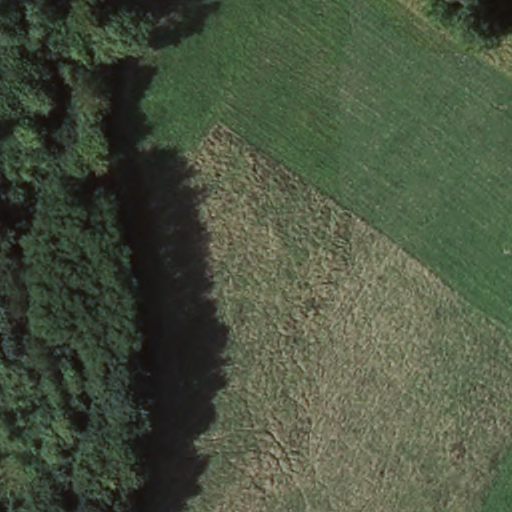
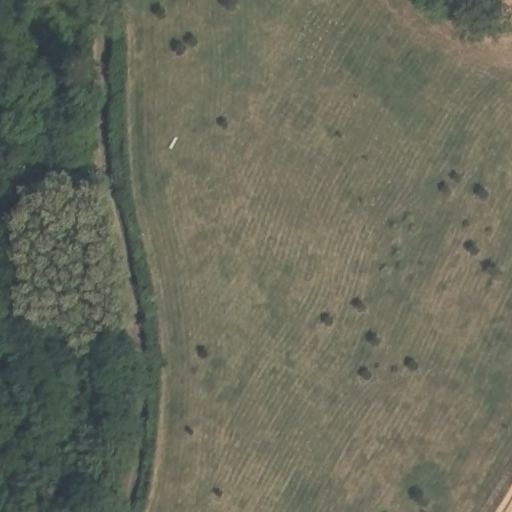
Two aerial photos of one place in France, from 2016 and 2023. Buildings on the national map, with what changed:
[]

